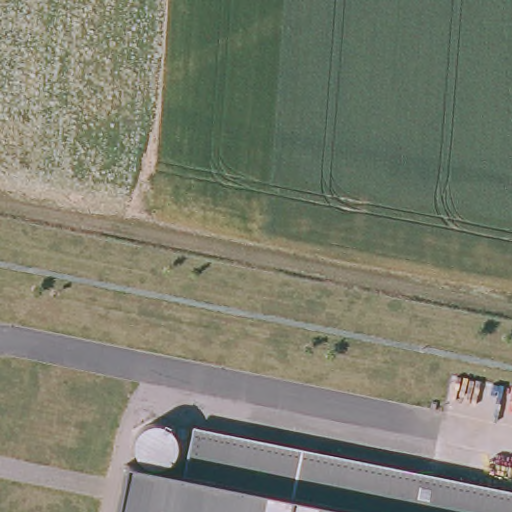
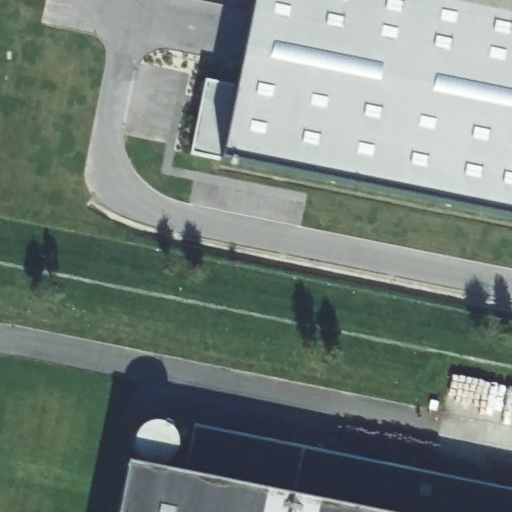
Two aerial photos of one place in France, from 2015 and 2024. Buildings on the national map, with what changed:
new [(186,147),(201,80),(229,94),(249,0),(512,0),(512,214),(186,147)]
unchanged [(123,466),(137,468),(133,454),(131,450),(130,441),(133,431),(139,427),(147,423),(158,422),(166,426),(188,438),(191,423),(512,490),(512,512),(114,512),(123,466)]

